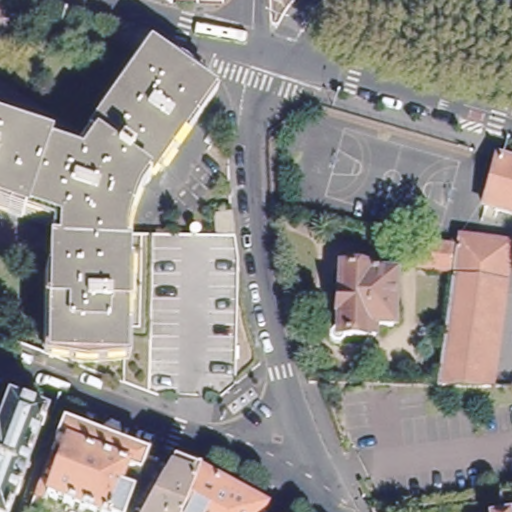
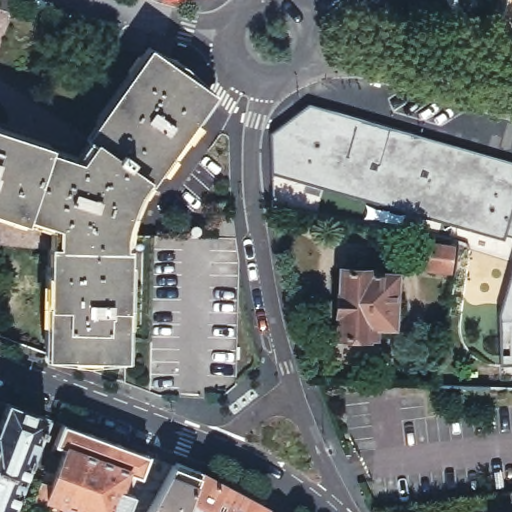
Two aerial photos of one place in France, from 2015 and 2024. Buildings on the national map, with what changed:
unchanged [(150,45),(215,92),(152,177),(128,159),(95,134),(150,45)]
new [(512,234),(502,232),(501,238),(273,172),(271,130),(309,105),(512,163),(512,234)]
unchanged [(53,143),(50,147),(78,156),(95,134),(128,159),(152,177),(148,177),(118,241),(127,241),(127,302),(124,359),(44,357),(48,308),(52,245),(58,245),(59,226),(22,209),(19,216),(0,210),(0,125),(53,143)]
demolished [(499,212),(483,208),(498,155),(512,159),(512,212),(500,209),(499,212)]
demolished [(512,241),(512,245),(507,285),(455,278),(460,242),(461,234),(512,241)]
unchanged [(454,248),(450,268),(417,263),(421,241),(454,248)]
unchanged [(370,266),(398,267),(396,307),(404,308),(403,319),(396,318),(396,322),(379,321),(378,330),(339,328),(343,262),(370,264),(370,266)]
new [(499,315),(512,271),(512,364),(502,365),(499,315)]
unchanged [(4,432),(16,402),(54,416),(17,512),(0,512),(0,430),(4,432)]
unchanged [(60,422),(147,455),(138,477),(123,472),(116,489),(131,495),(124,512),(90,512),(47,496),(45,499),(31,494),(38,477),(47,481),(61,446),(52,442),(60,422)]
unchanged [(197,464),(178,512),(136,512),(169,453),(197,464)]
unchanged [(261,498),(261,499),(254,512),(178,512),(197,464),(261,498)]

